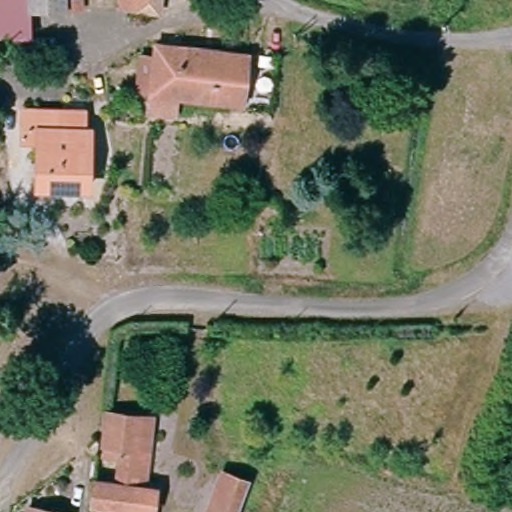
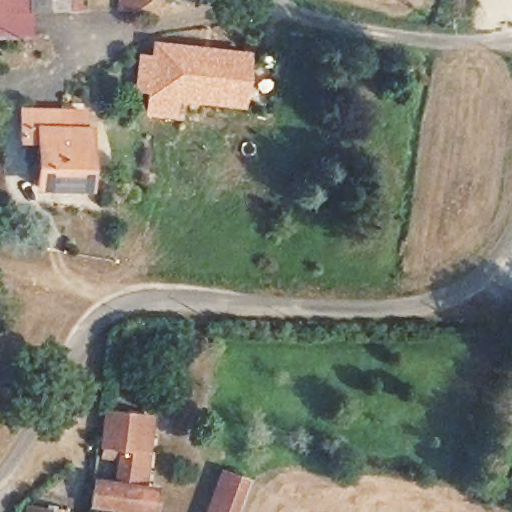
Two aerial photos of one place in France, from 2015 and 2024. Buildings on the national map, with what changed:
unchanged [(25,37),(0,38),(0,0),(24,0),(24,11),(25,37)]
unchanged [(60,0),(61,10),(24,11),(24,0),(60,0)]
unchanged [(116,9),(116,0),(155,0),(154,12),(116,9)]
unchanged [(145,50),(236,60),(230,109),(140,99),(145,50)]
unchanged [(76,189),(27,186),(30,142),(10,141),(11,108),(80,109),(76,189)]
unchanged [(92,460),(97,412),(132,415),(149,417),(144,465),(110,461),(92,460)]
unchanged [(244,478),(231,512),(198,512),(216,467),(244,478)]
unchanged [(142,512),(101,512),(101,508),(83,505),(86,483),(145,491),(142,512)]
unchanged [(48,512),(27,512),(27,509),(48,512)]

